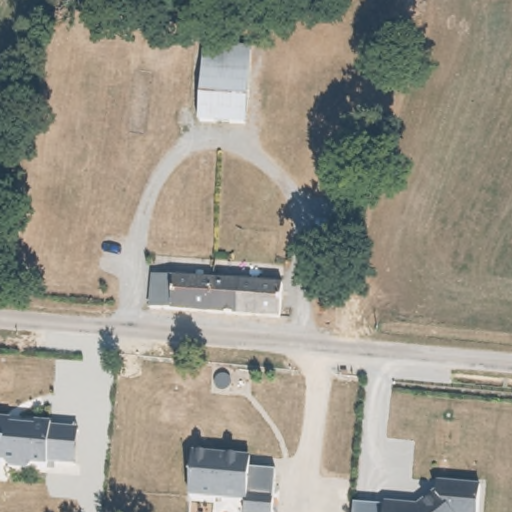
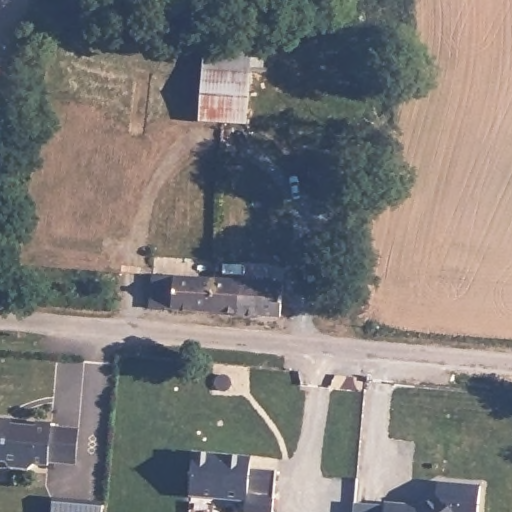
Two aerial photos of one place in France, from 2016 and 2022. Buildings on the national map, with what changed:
unchanged [(199,121),(201,53),(252,55),(249,124),(199,121)]
unchanged [(216,311),(158,305),(159,276),(219,279),(216,311)]
unchanged [(216,311),(219,279),(288,283),(286,318),(216,311)]
unchanged [(79,464),(51,461),(50,466),(0,461),(0,418),(84,427),(79,464)]
unchanged [(194,452),(252,457),(252,471),(276,472),(274,512),(246,512),(245,503),(190,497),(194,452)]
unchanged [(479,512),(387,512),(387,502),(421,505),(437,493),(438,480),(481,483),(479,512)]
new [(103,512),(52,512),(53,497),(104,502),(103,512)]

